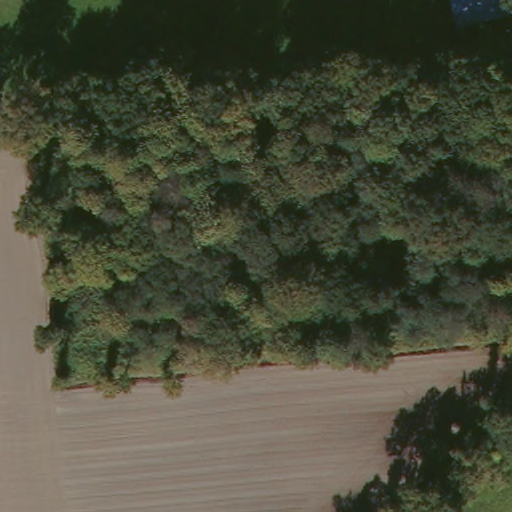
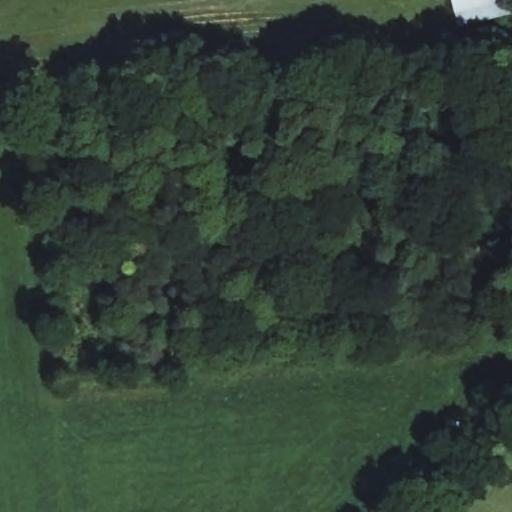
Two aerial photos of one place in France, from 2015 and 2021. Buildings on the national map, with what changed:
unchanged [(455,24),(449,0),(512,0),(512,11),(455,24)]

